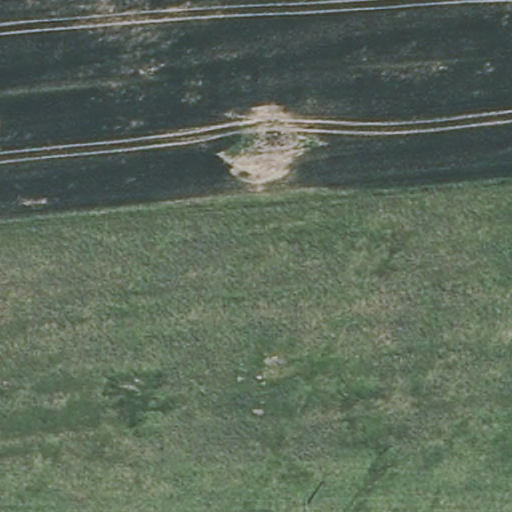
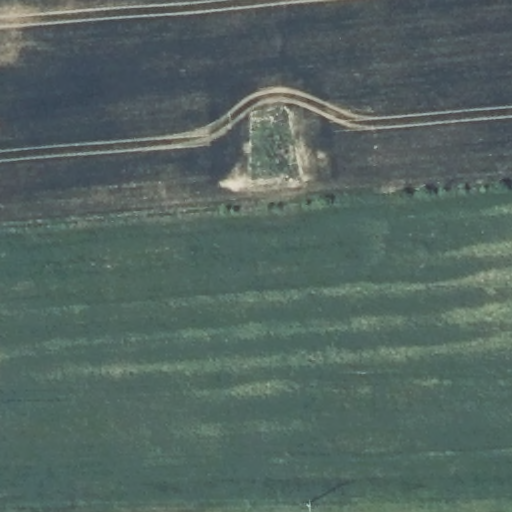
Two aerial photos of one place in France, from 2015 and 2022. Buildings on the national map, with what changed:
[]

